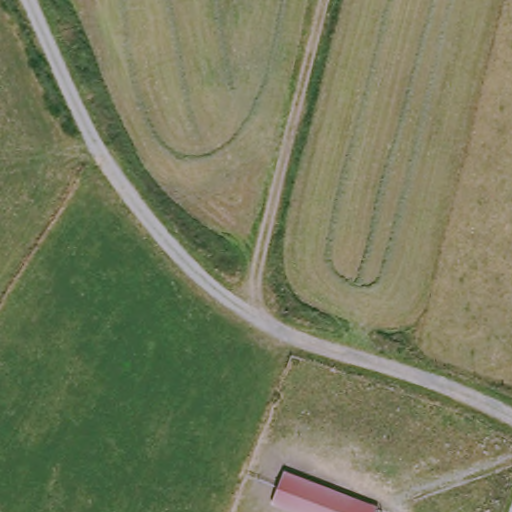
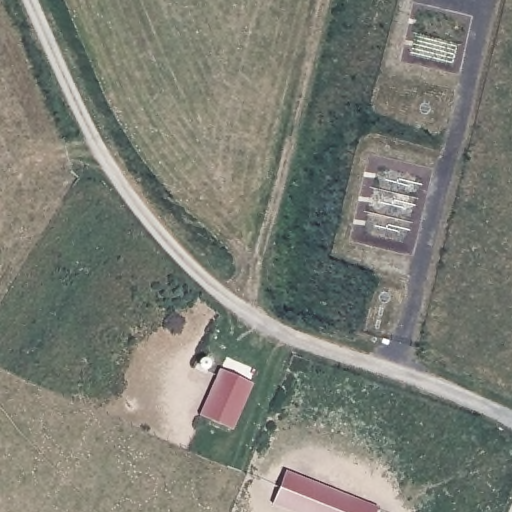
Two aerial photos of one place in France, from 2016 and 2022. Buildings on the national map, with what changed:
new [(252,383),(233,428),(201,415),(220,370),(252,383)]
unchanged [(377,507),(375,512),(294,512),(271,503),(285,471),(377,507)]

